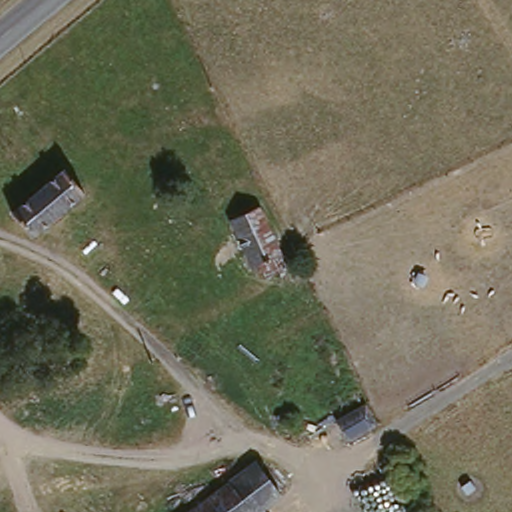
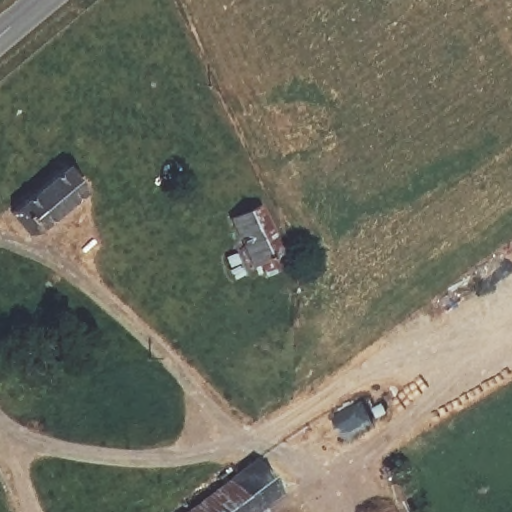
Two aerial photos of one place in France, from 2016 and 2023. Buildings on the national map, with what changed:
unchanged [(63,172),(82,198),(28,239),(8,213),(36,192),(63,172)]
unchanged [(268,282),(260,268),(254,271),(229,223),(257,209),(282,256),(290,270),(268,282)]
unchanged [(364,407),(374,426),(342,442),(332,422),(364,407)]
unchanged [(275,498),(257,512),(187,512),(251,465),(275,498)]

